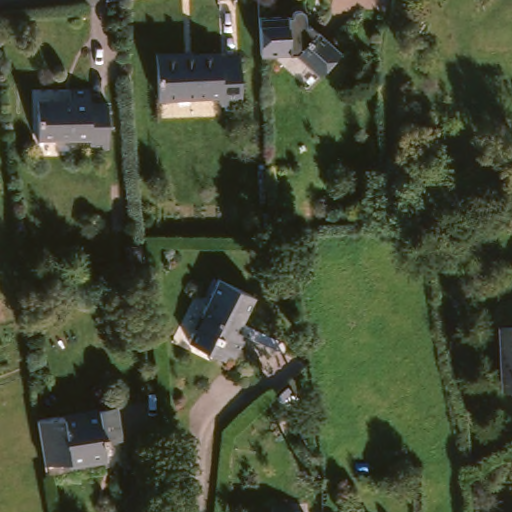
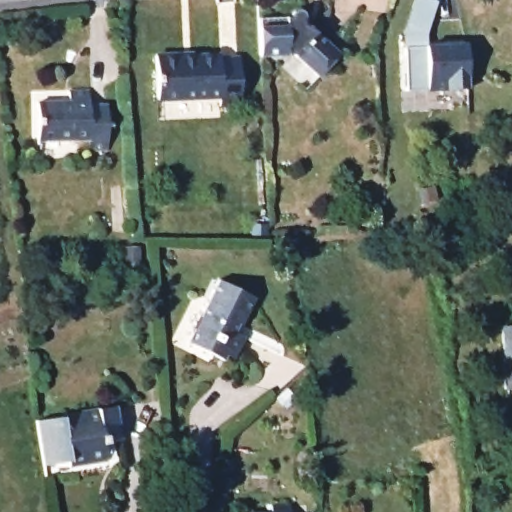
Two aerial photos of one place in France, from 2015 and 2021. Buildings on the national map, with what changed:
new [(426,37),(427,46),(467,42),(468,88),(447,90),(447,91),(428,92),(427,89),(406,90),(403,34),(415,0),(430,0),(437,2),(426,37)]
unchanged [(290,15),(292,10),(293,8),(295,7),(298,6),(300,6),(302,7),(305,11),(309,22),(339,52),(317,75),(296,54),(263,56),(261,16),(290,15)]
unchanged [(151,53),(179,51),(179,56),(217,54),(218,59),(241,57),(244,105),(220,106),(220,97),(154,101),(151,53)]
unchanged [(38,102),(73,102),(74,90),(94,90),(94,105),(111,105),(110,151),(90,150),(90,138),(38,137),(38,102)]
unchanged [(430,180),(430,204),(415,205),(414,181),(430,180)]
unchanged [(258,298),(244,327),(241,325),(237,332),(242,335),(234,351),(231,350),(225,360),(189,341),(195,328),(199,328),(206,316),(204,314),(222,280),(258,298)]
unchanged [(512,327),(512,387),(503,327),(512,327)]
unchanged [(70,416),(70,411),(115,406),(117,436),(101,438),(104,465),(64,470),(63,461),(39,463),(35,420),(70,416)]
unchanged [(267,506),(285,507),(285,512),(267,512),(267,506)]

